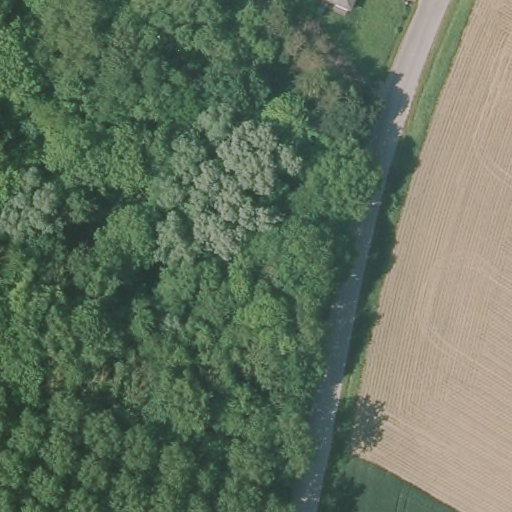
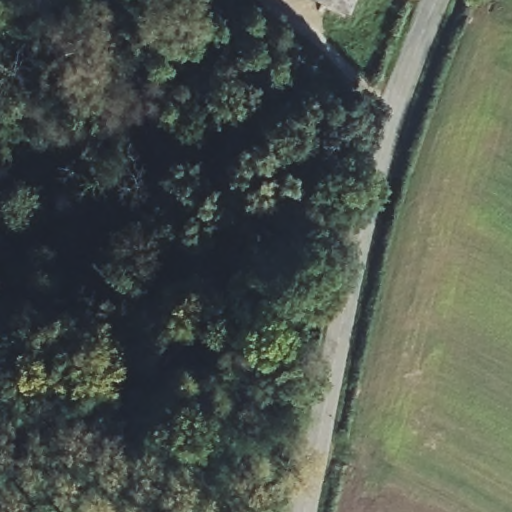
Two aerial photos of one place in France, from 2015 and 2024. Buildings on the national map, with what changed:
unchanged [(312,0),(351,0),(345,14),(312,0)]

